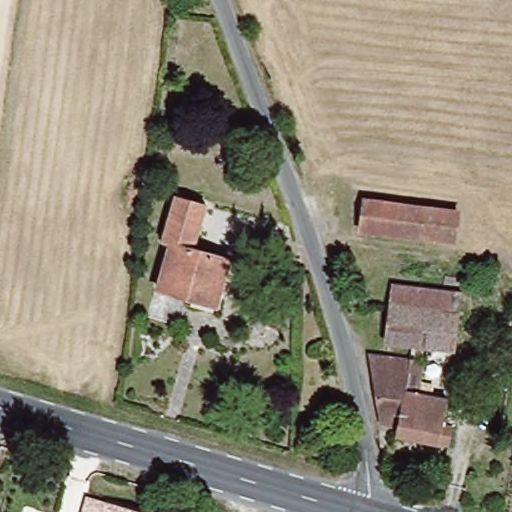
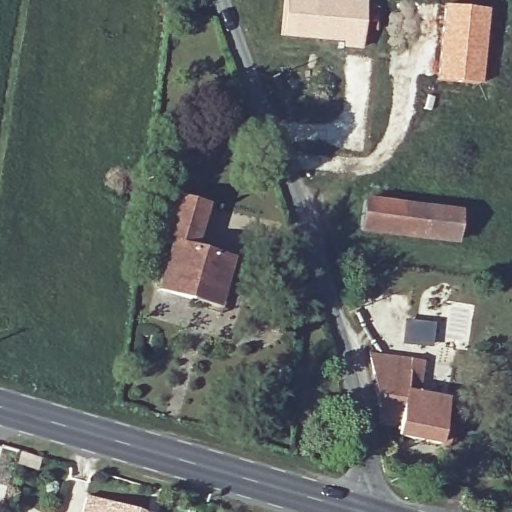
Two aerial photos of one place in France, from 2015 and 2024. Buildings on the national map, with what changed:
new [(361,0),(366,0),(362,49),(326,43),(278,38),(283,0),(361,0)]
new [(442,4),(488,9),(480,86),(435,81),(442,4)]
unchanged [(153,288),(165,244),(160,243),(172,193),(206,202),(192,252),(229,260),(215,303),(153,288)]
unchanged [(358,235),(361,199),(457,212),(454,247),(358,235)]
unchanged [(457,294),(452,324),(462,324),(461,335),(450,334),(435,412),(441,412),(442,446),(392,441),(394,427),(376,427),(368,359),(416,364),(413,397),(426,397),(431,353),(381,347),(387,288),(457,294)]
unchanged [(125,512),(83,512),(87,501),(125,512)]

